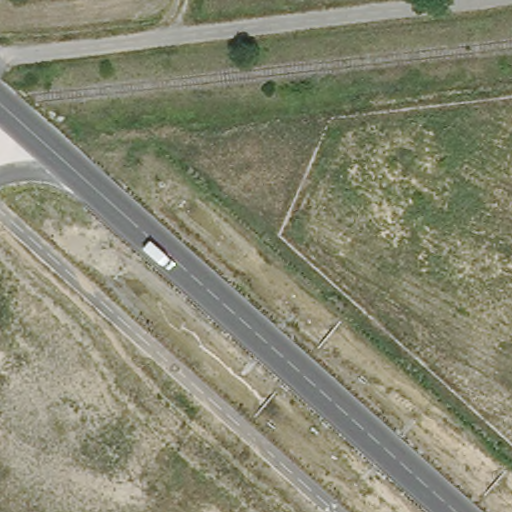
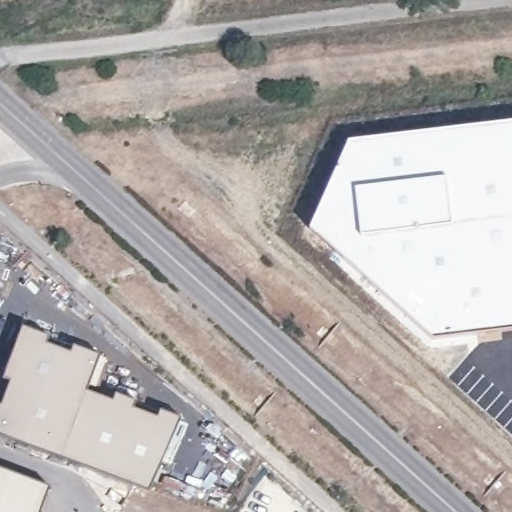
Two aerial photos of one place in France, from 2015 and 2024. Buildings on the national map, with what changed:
new [(345,140),(512,120),(512,330),(499,331),(477,333),(429,340),(306,229),(340,155),(345,140)]
new [(0,405),(10,382),(2,379),(22,326),(50,336),(47,343),(70,352),(72,345),(100,355),(87,391),(112,400),(115,393),(136,401),(134,408),(157,417),(160,410),(181,418),(149,491),(0,435),(0,404),(0,405)]
new [(50,487),(41,512),(0,512),(0,469),(50,487)]

